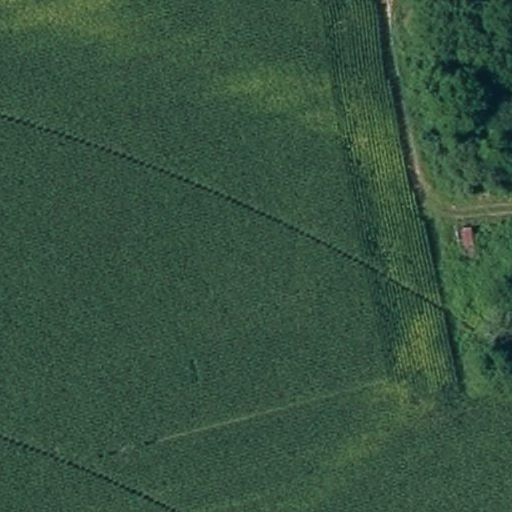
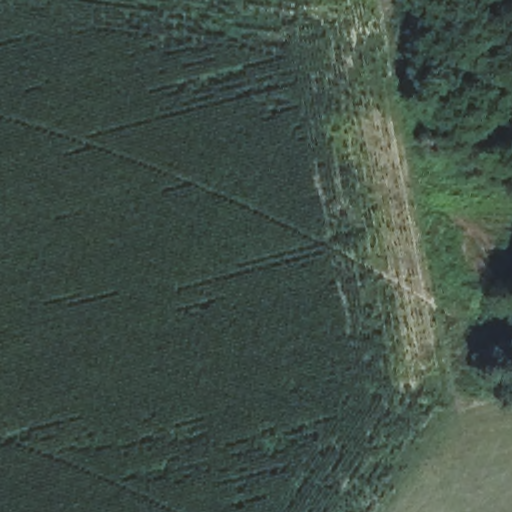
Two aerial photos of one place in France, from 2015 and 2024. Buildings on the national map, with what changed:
unchanged [(462,263),(454,232),(474,228),(481,258),(462,263)]

